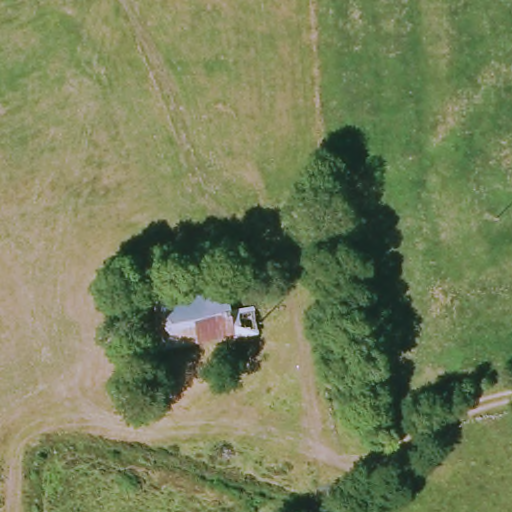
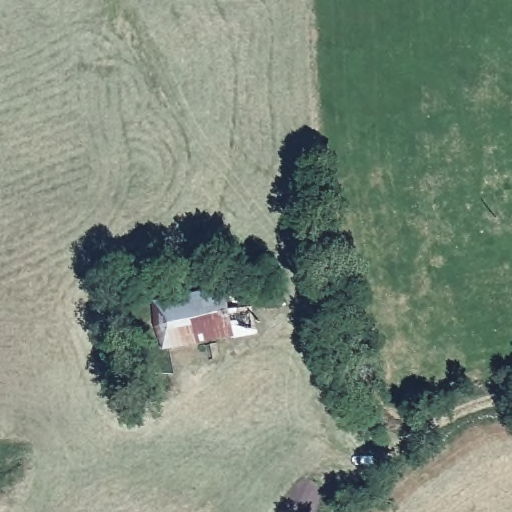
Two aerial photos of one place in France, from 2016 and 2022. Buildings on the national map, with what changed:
unchanged [(227,294),(230,315),(252,312),(257,338),(235,343),(232,340),(163,349),(155,303),(227,294)]

